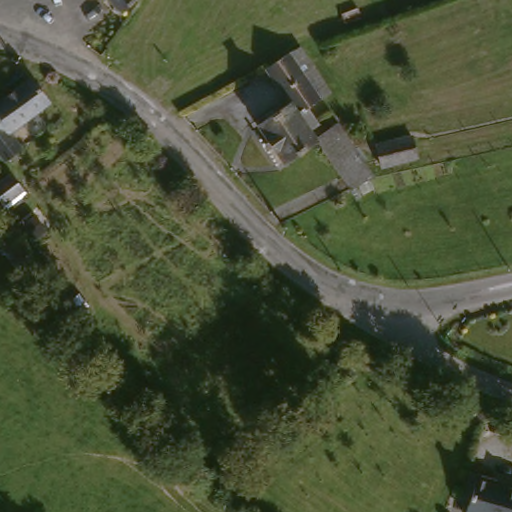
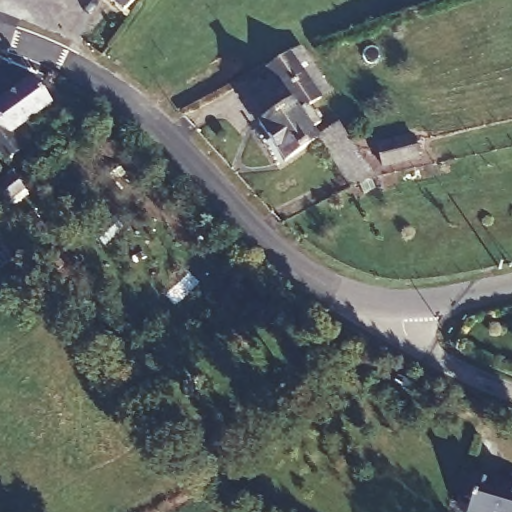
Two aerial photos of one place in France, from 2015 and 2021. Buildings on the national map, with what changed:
unchanged [(109,0),(130,0),(122,9),(109,0)]
unchanged [(265,69),(284,59),(281,55),(294,50),(304,61),(293,68),(306,86),(285,100),(265,69)]
unchanged [(28,78),(46,99),(3,131),(18,150),(0,162),(0,99),(28,78)]
unchanged [(279,165),(275,160),(269,164),(249,134),(256,130),(251,123),(285,100),(313,142),(279,165)]
unchanged [(334,128),(367,176),(344,188),(313,142),(334,128)]
unchanged [(438,134),(443,157),(403,167),(398,144),(438,134)]
unchanged [(11,171),(24,190),(3,204),(0,198),(0,178),(11,171)]
unchanged [(491,483),(489,487),(512,494),(512,512),(465,512),(467,504),(461,503),(468,477),(491,483)]

